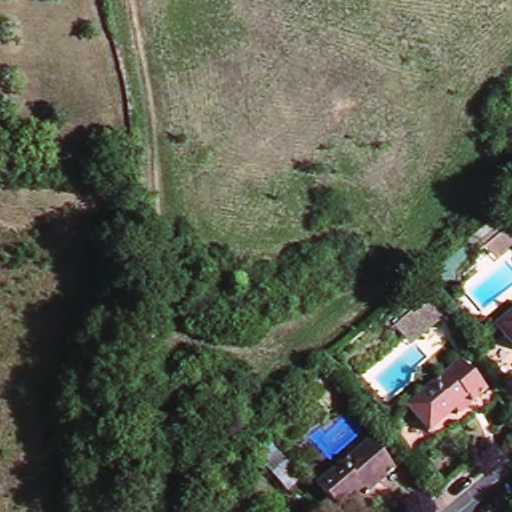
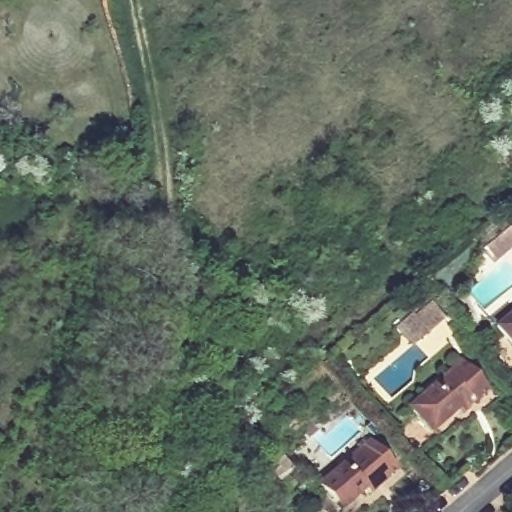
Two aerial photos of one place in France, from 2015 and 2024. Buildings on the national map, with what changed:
unchanged [(486,253),(512,232),(512,251),(496,264),(486,253)]
unchanged [(394,327),(410,313),(414,316),(430,303),(444,318),(415,343),(411,346),(394,327)]
unchanged [(512,315),(512,351),(495,329),(512,315)]
unchanged [(484,394),(472,403),(467,398),(461,403),(466,409),(459,416),(454,411),(427,434),(407,411),(461,365),(484,394)]
unchanged [(446,441),(469,467),(439,492),(418,467),(446,441)]
unchanged [(392,472),(380,482),(375,478),(369,483),(374,489),(367,495),(363,490),(337,512),(315,487),(367,442),(392,472)]
unchanged [(418,467),(439,492),(416,512),(411,512),(392,490),(418,467)]

